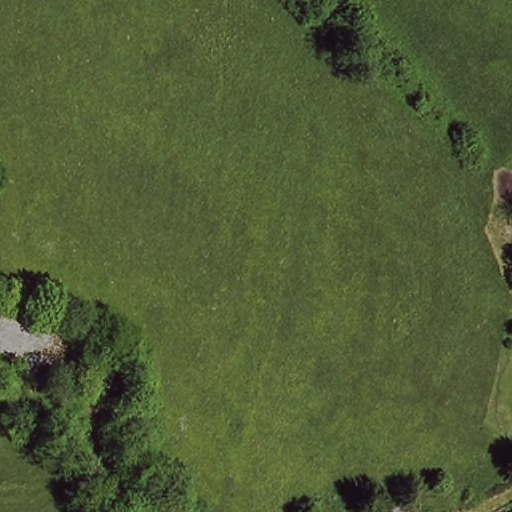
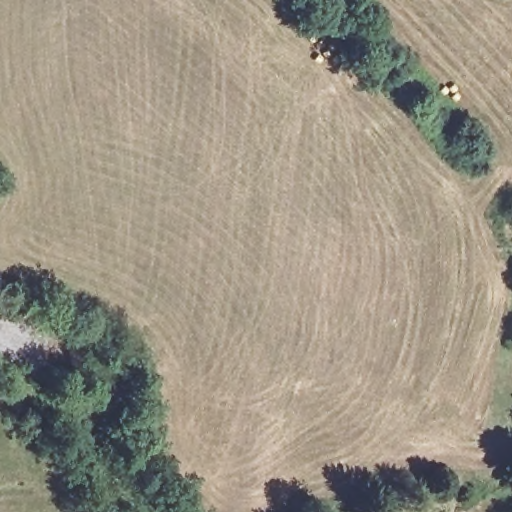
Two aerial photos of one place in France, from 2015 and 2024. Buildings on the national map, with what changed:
unchanged [(369,512),(355,512),(358,505),(369,512)]
unchanged [(345,512),(338,512),(340,509),(345,512)]

